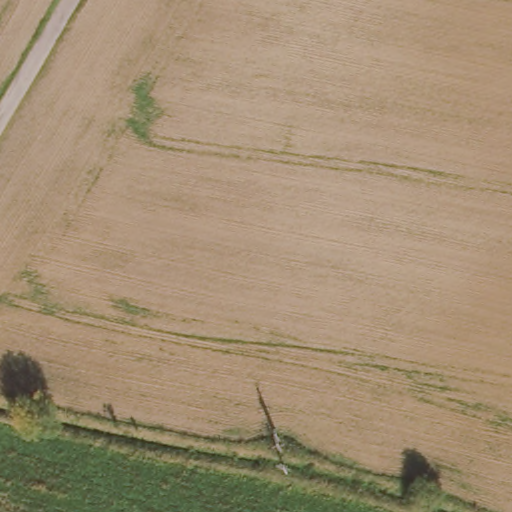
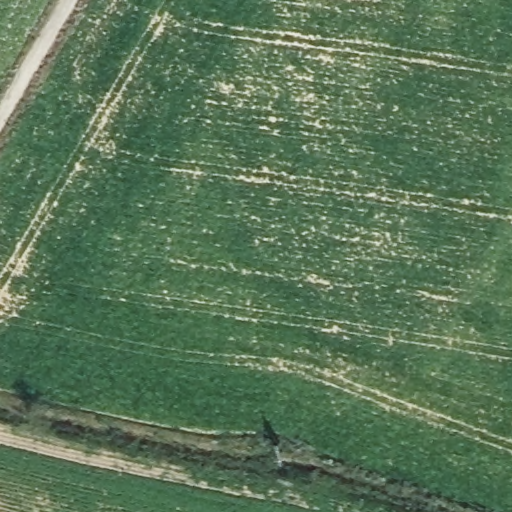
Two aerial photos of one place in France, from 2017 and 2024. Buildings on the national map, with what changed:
[]

